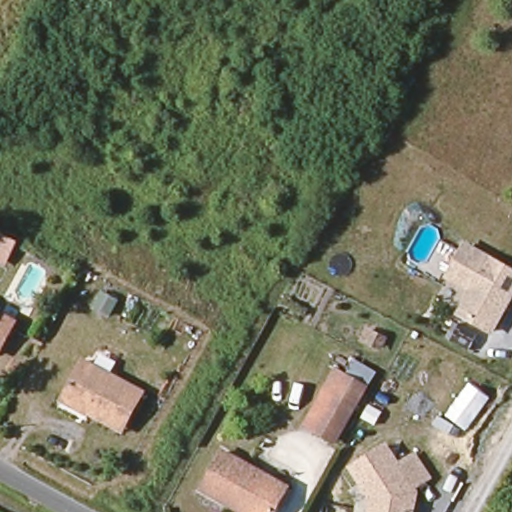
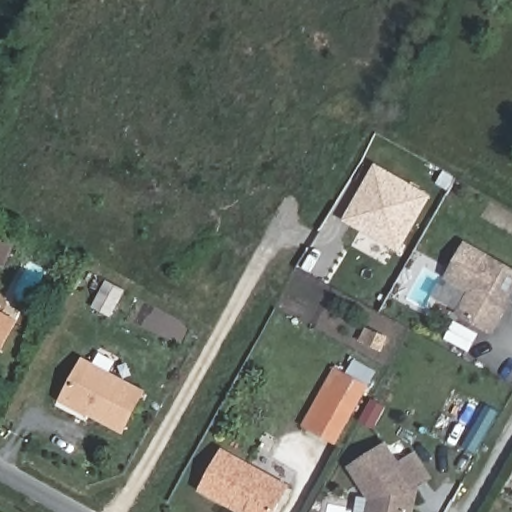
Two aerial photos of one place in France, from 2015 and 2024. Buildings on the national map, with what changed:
new [(344,223),(375,167),(434,195),(400,250),(344,223)]
unchanged [(21,247),(9,268),(0,263),(0,235),(21,247)]
unchanged [(512,300),(492,336),(455,317),(467,292),(442,278),(463,241),(512,268),(512,300)]
unchanged [(12,320),(0,340),(0,313),(12,320)]
unchanged [(302,427),(333,368),(347,375),(354,358),(376,372),(334,446),(302,427)]
unchanged [(146,395),(125,431),(65,398),(86,360),(146,395)]
unchanged [(344,466),(386,441),(399,462),(414,452),(431,478),(416,489),(419,495),(416,512),(367,512),(369,501),(344,466)]
unchanged [(275,512),(236,512),(202,492),(223,455),(287,492),(275,512)]

